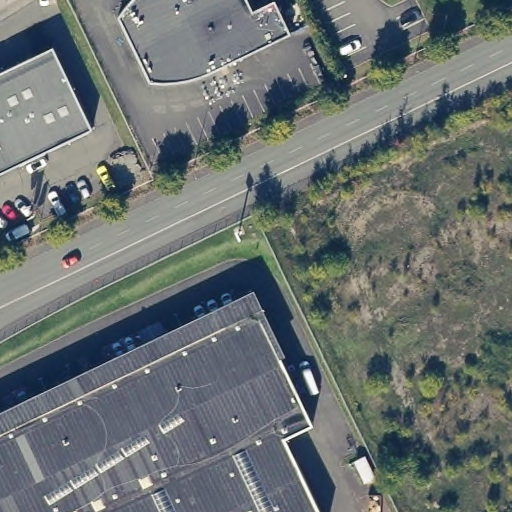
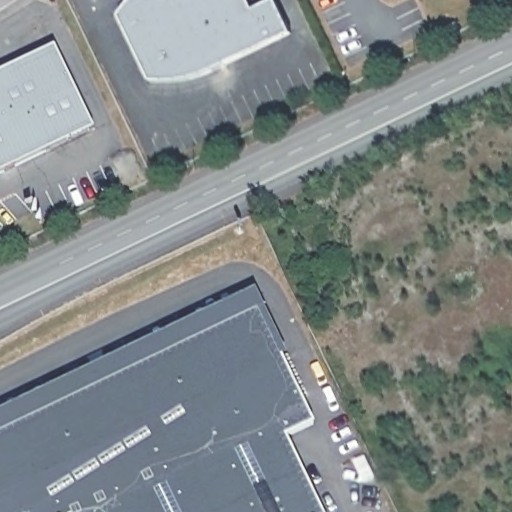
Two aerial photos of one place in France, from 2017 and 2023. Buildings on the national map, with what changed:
unchanged [(253,10),(274,0),(275,0),(291,33),(214,71),(202,76),(190,80),(177,82),(164,82),(150,82),(119,16),(127,5),(131,0),(248,0),(253,10)]
unchanged [(0,72),(32,57),(54,46),(67,75),(93,129),(0,173),(0,72)]
unchanged [(0,410),(250,291),(257,307),(0,431),(0,410)]
unchanged [(285,437),(321,512),(0,512),(0,431),(257,307),(313,423),(285,437)]

